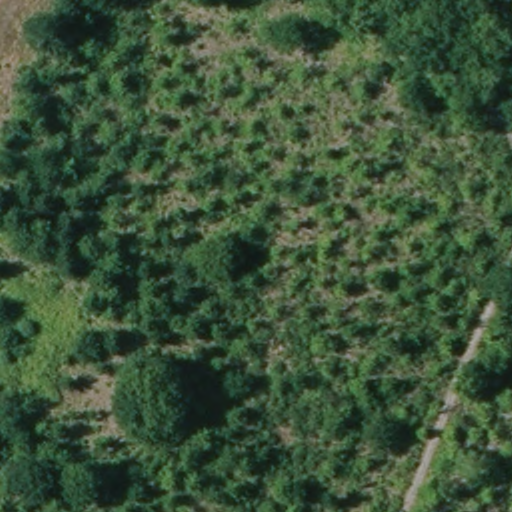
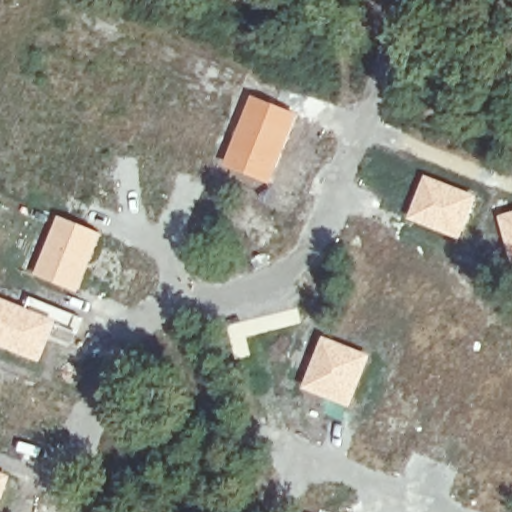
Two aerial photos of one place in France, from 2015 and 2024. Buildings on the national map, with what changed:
new [(253,95),(296,114),(270,184),(226,167),(253,95)]
new [(426,175),(478,196),(460,241),(408,220),(426,175)]
new [(512,265),(498,215),(512,211),(512,265)]
new [(57,215),(101,233),(78,293),(35,276),(57,215)]
new [(25,307),(29,296),(82,318),(70,348),(50,339),(40,364),(0,347),(0,297),(25,307)]
new [(296,308),(299,317),(275,324),(276,329),(245,337),(250,355),(234,359),(225,325),(296,308)]
new [(323,336),(371,356),(350,409),(302,389),(323,336)]
new [(11,476),(0,504),(0,471),(11,476)]

